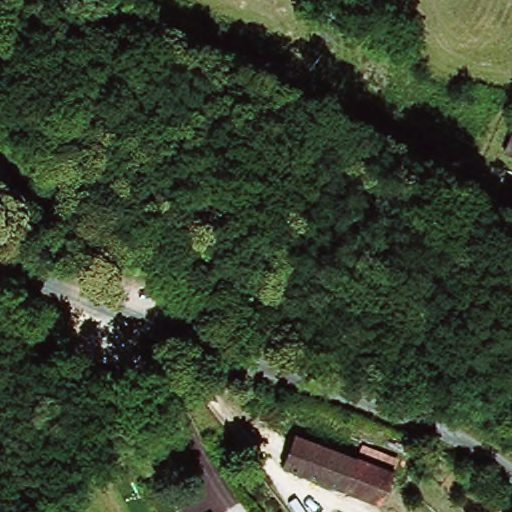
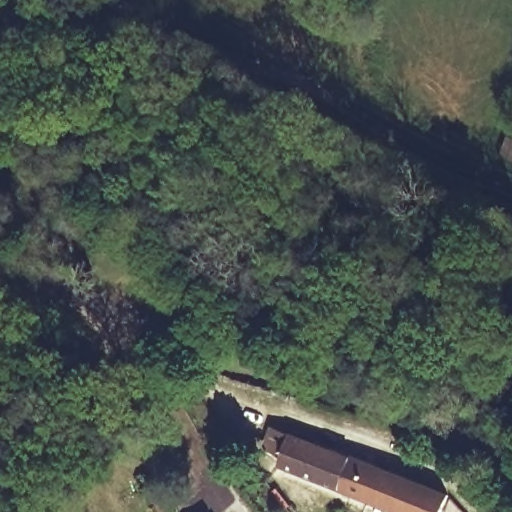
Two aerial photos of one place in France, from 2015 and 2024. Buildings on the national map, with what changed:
unchanged [(502,122),(511,126),(509,130),(512,132),(512,142),(507,154),(492,147),(502,122)]
unchanged [(280,458),(295,427),(356,456),(340,487),(280,458)]
unchanged [(373,503),(340,487),(356,456),(391,473),(373,503)]
new [(446,512),(397,512),(373,503),(391,473),(452,493),(446,512)]

